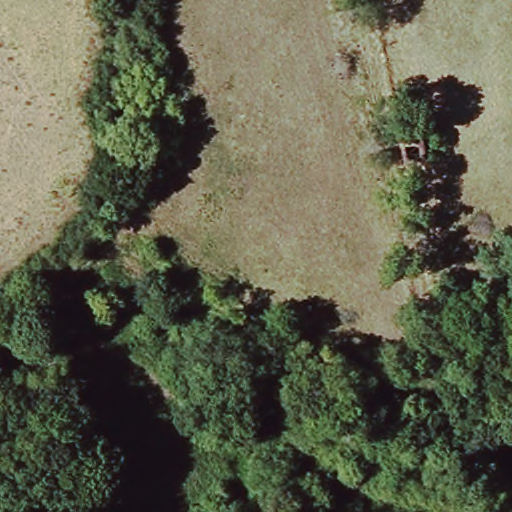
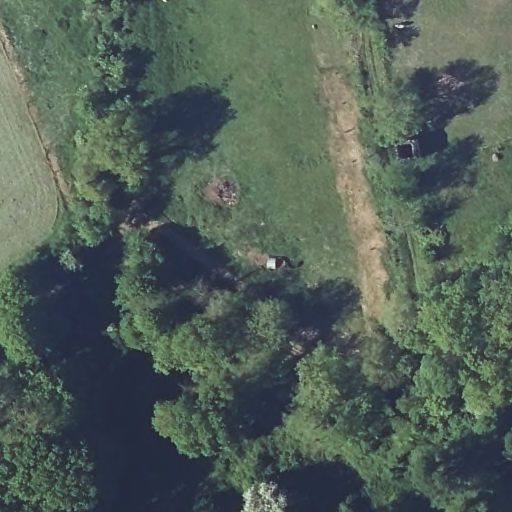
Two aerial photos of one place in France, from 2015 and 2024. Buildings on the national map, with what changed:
unchanged [(410,145),(433,140),(439,162),(414,166),(410,145)]

